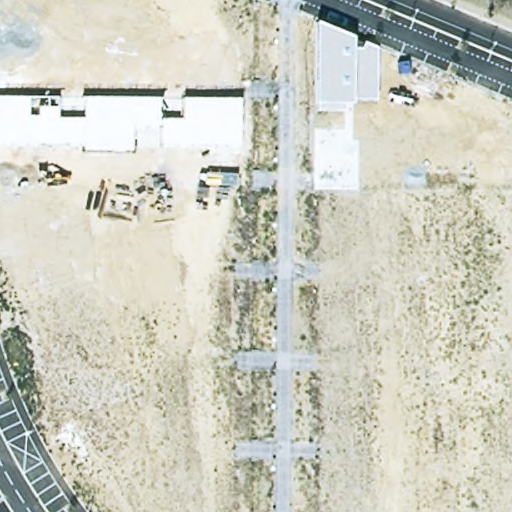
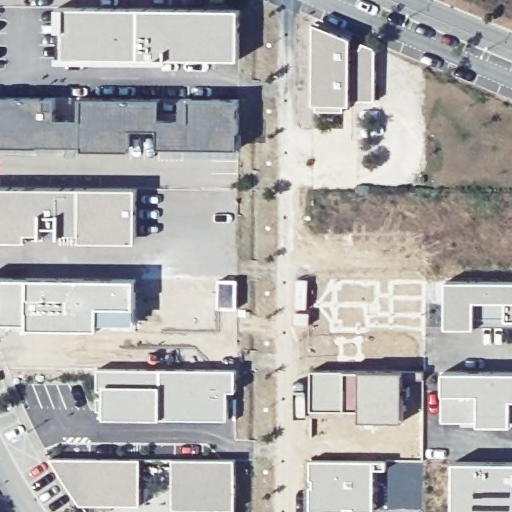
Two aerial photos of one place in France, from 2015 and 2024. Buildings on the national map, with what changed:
new [(57,32),(57,8),(65,9),(239,10),(239,62),(64,59),(64,32),(57,32)]
unchanged [(352,37),(350,48),(363,48),(364,42),(377,49),(375,102),(352,101),(352,106),(343,106),(343,112),(315,112),(314,104),(314,23),(352,37)]
new [(0,96),(56,97),(56,117),(78,118),(78,97),(160,98),(160,119),(180,119),(180,98),(237,99),(239,149),(157,149),(157,129),(132,129),(132,148),(0,146),(0,96)]
new [(0,188),(137,189),(136,244),(80,243),(81,236),(27,234),(27,242),(0,242),(0,188)]
new [(137,329),(27,330),(27,327),(0,326),(0,277),(138,278),(137,329)]
new [(218,279),(239,279),(239,310),(218,309),(218,279)]
new [(296,279),(309,280),(309,326),(295,325),(296,279)]
new [(445,281),(512,282),(512,325),(475,325),(474,328),(445,329),(445,281)]
new [(161,368),(162,420),(102,420),(102,389),(97,389),(97,368),(161,368)]
new [(238,368),(238,393),(231,393),(231,421),(162,420),(161,368),(238,368)]
new [(310,370),(362,370),(360,410),(305,412),(310,370)]
new [(360,410),(362,370),(406,371),(405,421),(360,421),(360,410)]
new [(442,371),(512,371),(512,426),(479,426),(442,421),(442,371)]
new [(140,506),(80,505),(48,458),(139,459),(140,506)]
new [(172,510),(172,459),(235,460),(235,511),(172,510)]
new [(309,459),(376,460),(376,512),(308,512),(309,459)]
new [(387,460),(423,461),(423,511),(386,510),(387,460)]
new [(454,461),(512,461),(512,512),(453,512),(454,461)]

